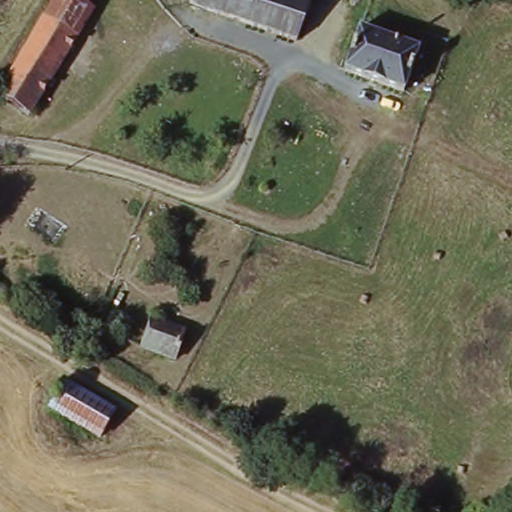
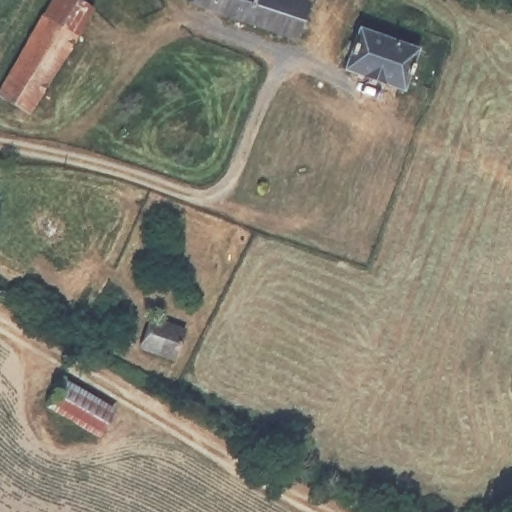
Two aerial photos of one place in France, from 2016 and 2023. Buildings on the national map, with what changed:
unchanged [(55,0),(68,0),(91,14),(78,37),(32,120),(0,102),(0,99),(46,17),(47,15),(55,0)]
unchanged [(308,2),(295,41),(188,2),(189,0),(302,0),(308,2)]
unchanged [(308,2),(302,0),(309,0),(308,2)]
unchanged [(360,30),(417,52),(402,96),(345,72),(360,30)]
unchanged [(146,319),(179,328),(171,360),(139,350),(146,319)]
unchanged [(62,387),(112,412),(99,437),(51,413),(62,387)]

